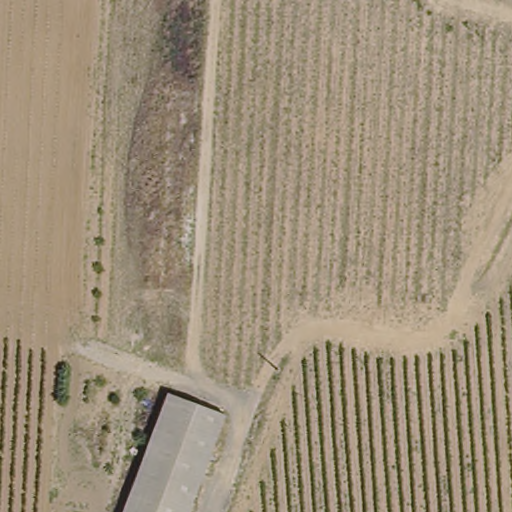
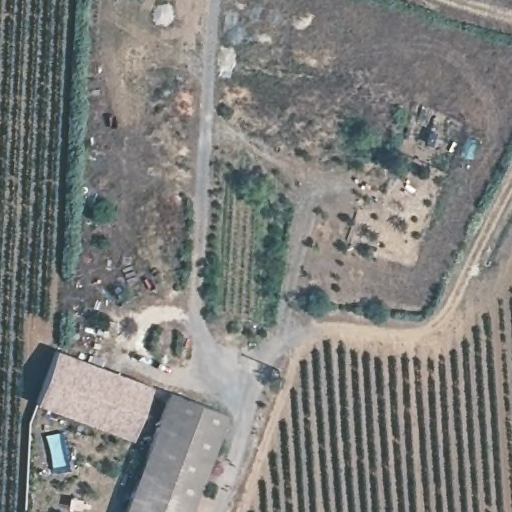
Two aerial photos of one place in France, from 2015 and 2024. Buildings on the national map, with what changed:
new [(37,403),(55,350),(151,385),(130,438),(37,403)]
unchanged [(224,422),(191,512),(125,512),(166,400),(224,422)]

